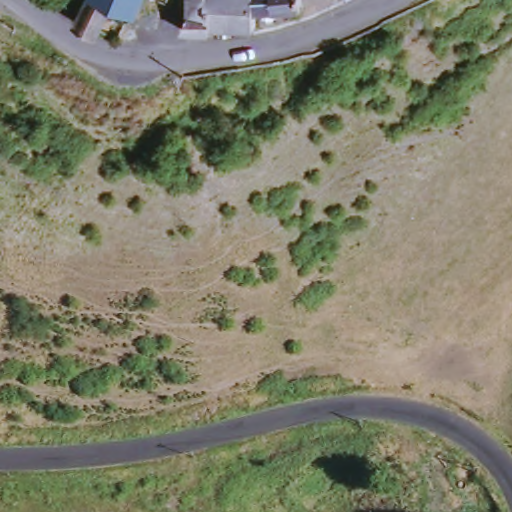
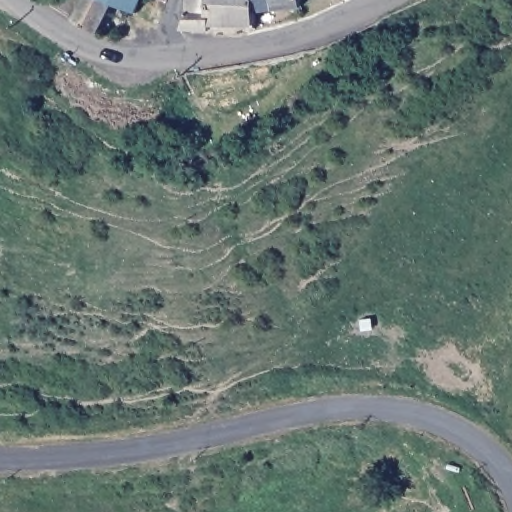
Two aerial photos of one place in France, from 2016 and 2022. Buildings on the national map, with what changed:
unchanged [(90,0),(148,0),(141,18),(112,8),(102,37),(80,23),(90,0)]
unchanged [(217,25),(216,32),(188,27),(192,15),(192,0),(263,0),(263,13),(263,28),(244,29),(217,25)]
unchanged [(263,13),(263,0),(309,0),(309,4),(263,13)]

